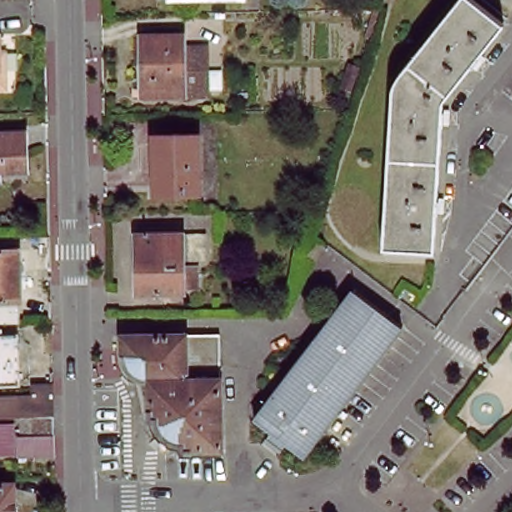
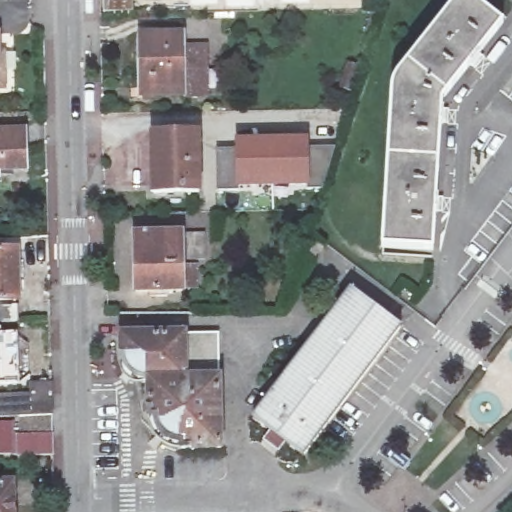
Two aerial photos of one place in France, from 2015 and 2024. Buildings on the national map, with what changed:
unchanged [(497,29),(440,104),(435,256),(385,255),(391,82),(457,0),(460,0),(497,29)]
unchanged [(7,90),(0,90),(0,36),(1,36),(2,55),(7,55),(7,70),(7,90)]
unchanged [(139,72),(138,39),(178,39),(178,52),(201,52),(202,99),(153,99),(153,94),(135,94),(135,72),(139,72)]
unchanged [(357,69),(350,90),(341,87),(348,66),(357,69)]
unchanged [(20,169),(0,169),(0,134),(19,133),(20,169)]
unchanged [(199,134),(198,193),(155,193),(155,135),(199,134)]
new [(214,145),(232,145),(232,137),(308,135),(308,145),(335,144),(325,188),(308,188),(235,190),(215,191),(214,145)]
unchanged [(327,243),(325,248),(322,246),(315,256),(309,251),(320,237),(327,243)]
unchanged [(192,292),(180,292),(180,296),(132,295),(132,239),(202,239),(202,264),(180,264),(180,272),(192,271),(192,292)]
unchanged [(10,301),(0,301),(0,250),(9,250),(10,301)]
unchanged [(267,439),(272,432),(256,420),(350,291),(402,330),(306,459),(288,445),(283,451),(267,439)]
unchanged [(10,320),(0,320),(0,307),(10,307),(10,320)]
unchanged [(183,449),(183,444),(178,443),(175,442),(170,441),(167,439),(165,436),(162,434),(160,430),(157,426),(157,422),(155,419),(150,419),(149,383),(139,383),(135,382),(132,379),(127,377),(125,373),(123,370),(122,366),(122,361),(122,337),(217,333),(222,447),(183,449)]
unchanged [(7,385),(0,385),(0,335),(5,335),(7,385)]
unchanged [(0,423),(0,401),(34,401),(34,389),(56,388),(57,422),(25,422),(0,423)]
unchanged [(57,460),(23,461),(23,458),(0,459),(0,429),(15,428),(16,440),(25,440),(25,422),(57,422),(57,460)]
unchanged [(14,512),(0,512),(0,483),(13,483),(14,512)]

